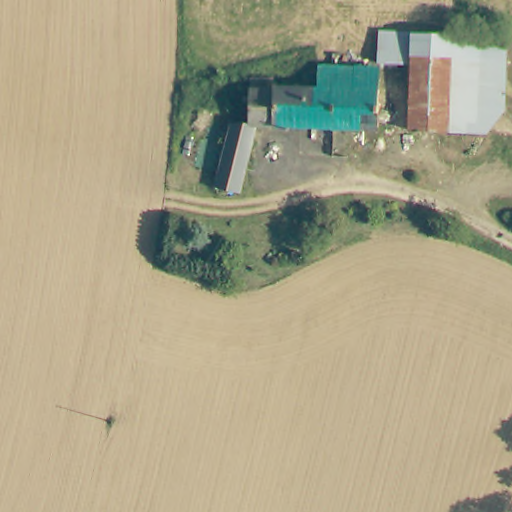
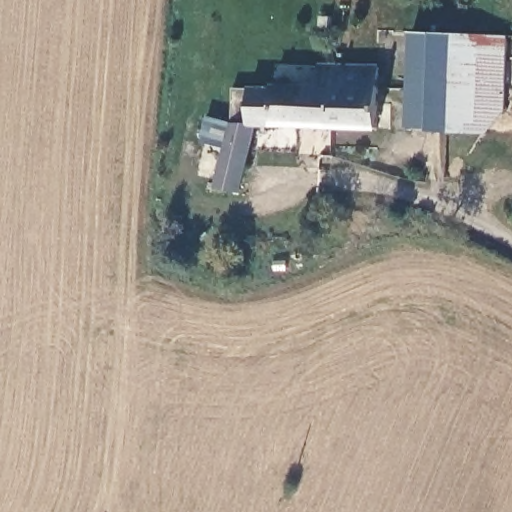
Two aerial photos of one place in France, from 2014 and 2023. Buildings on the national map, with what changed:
unchanged [(392,35),(425,39),(463,42),(512,47),(512,120),(512,123),(492,142),(452,138),(414,134),(423,62),(390,59),(392,35)]
unchanged [(346,60),(367,61),(389,65),(381,130),(339,125),(337,124),(343,91),(326,89),(332,59),(346,60)]
unchanged [(343,91),(337,124),(260,117),(237,181),(216,171),(235,111),(241,112),(244,100),(255,102),(256,96),(257,88),(285,91),(286,84),(326,89),(343,91)]

